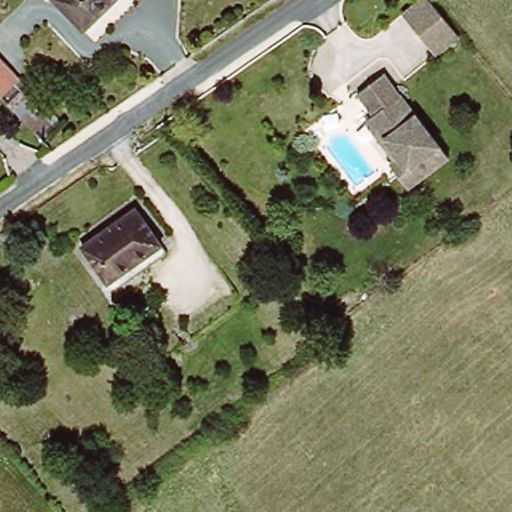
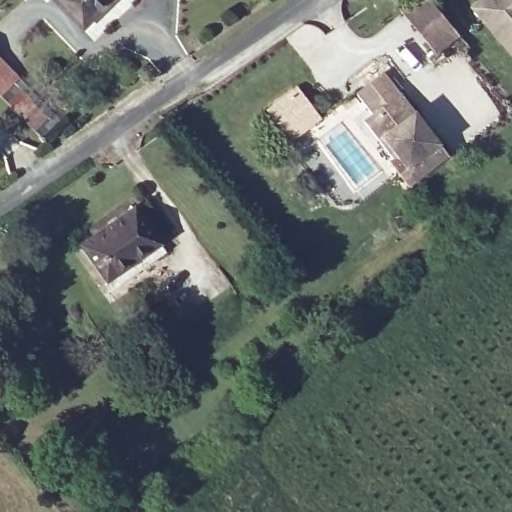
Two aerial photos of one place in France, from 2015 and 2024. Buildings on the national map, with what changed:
unchanged [(54,1),(56,0),(114,0),(85,30),(54,1)]
unchanged [(432,50),(401,10),(412,0),(429,0),(457,34),(432,50)]
new [(512,59),(469,7),(478,0),(512,0),(512,58),(512,59)]
unchanged [(18,85),(50,120),(38,133),(3,98),(0,94),(0,57),(23,80),(18,85)]
unchanged [(392,156),(363,118),(371,111),(354,90),(382,70),(446,153),(406,184),(396,172),(387,160),(392,156)]
unchanged [(139,207),(167,246),(111,286),(83,246),(139,207)]

